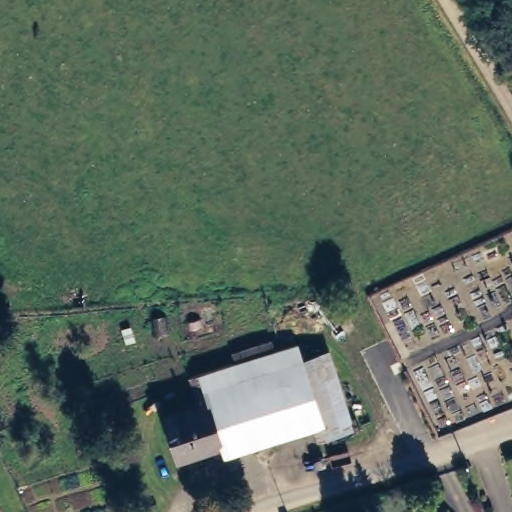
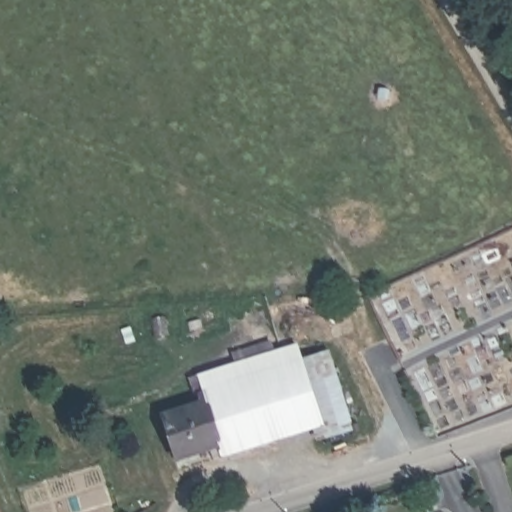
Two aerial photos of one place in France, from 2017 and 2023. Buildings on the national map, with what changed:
unchanged [(190,375),(300,343),(305,358),(331,351),(357,432),(320,445),(318,435),(221,462),(219,452),(200,399),(190,375)]
unchanged [(175,466),(160,415),(200,399),(219,452),(175,466)]

